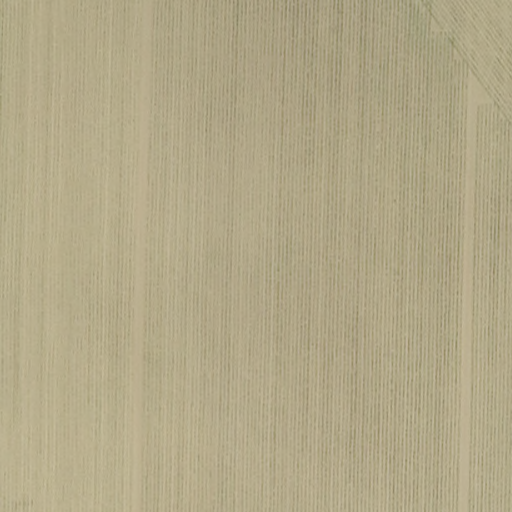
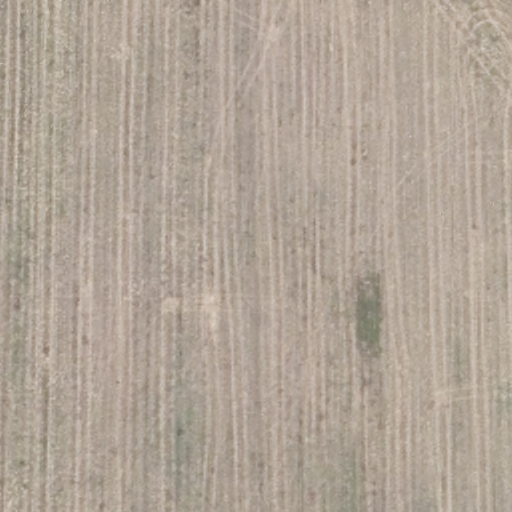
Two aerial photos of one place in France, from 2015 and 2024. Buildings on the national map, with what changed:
[]

